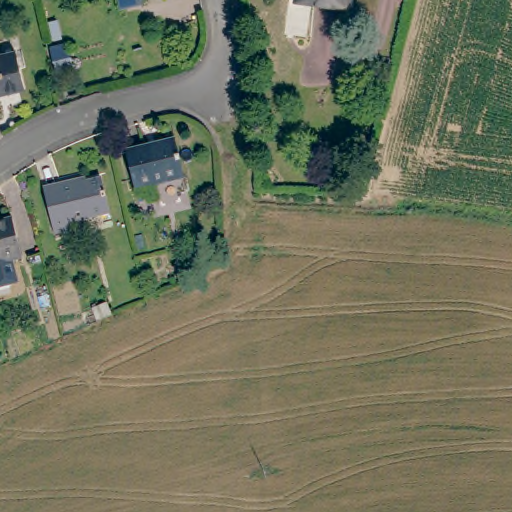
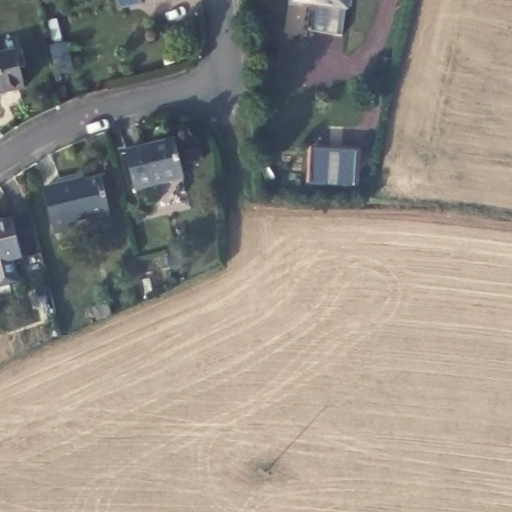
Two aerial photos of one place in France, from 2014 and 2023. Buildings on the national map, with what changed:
unchanged [(140,1),(120,6),(118,0),(140,0),(140,1)]
unchanged [(295,0),(346,0),(345,9),(295,2),(295,0)]
unchanged [(55,46),(66,43),(71,70),(61,73),(55,46)]
unchanged [(20,52),(28,89),(0,96),(0,57),(20,52)]
unchanged [(145,178),(134,181),(126,143),(173,132),(182,166),(181,169),(184,184),(149,193),(145,178)]
new [(354,186),(308,185),(311,147),(357,150),(354,186)]
unchanged [(73,182),(74,186),(100,180),(108,214),(67,223),(68,230),(53,234),(43,190),(73,182)]
unchanged [(17,216),(26,254),(0,261),(0,220),(17,216)]
unchanged [(101,320),(98,322),(92,309),(106,303),(111,316),(101,320)]

